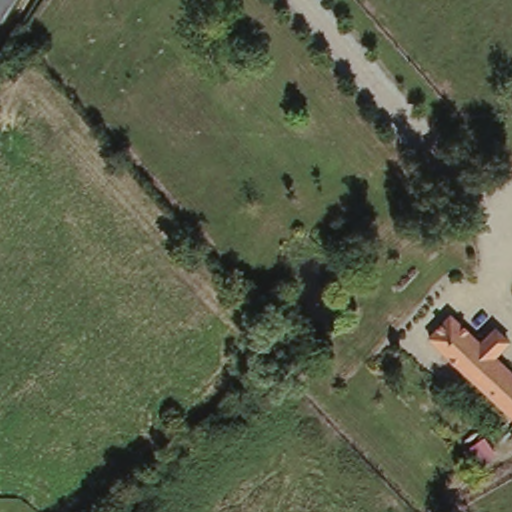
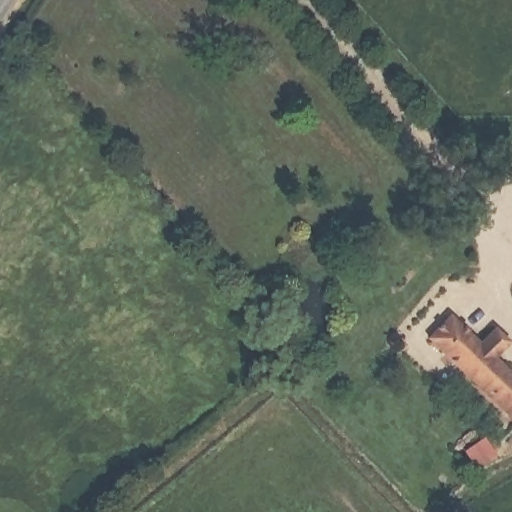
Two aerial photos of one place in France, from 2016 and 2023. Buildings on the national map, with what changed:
unchanged [(452,317),(476,345),(492,330),(506,346),(490,360),(512,386),(512,426),(510,427),(431,337),(452,317)]

